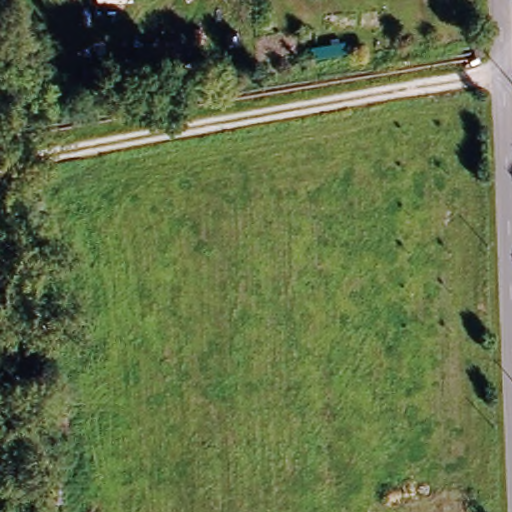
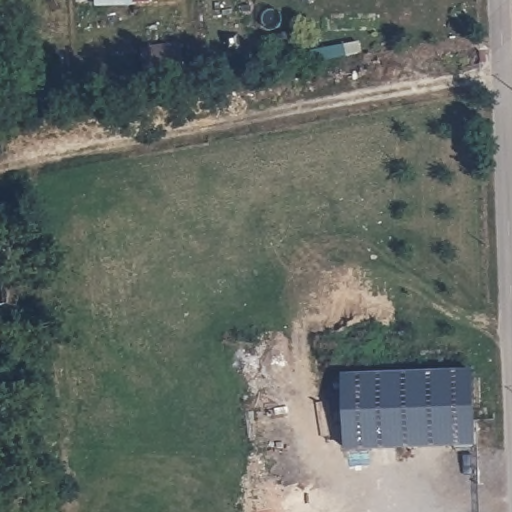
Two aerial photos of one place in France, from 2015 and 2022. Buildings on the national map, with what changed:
new [(475,374),(475,447),(348,448),(347,374),(475,374)]

